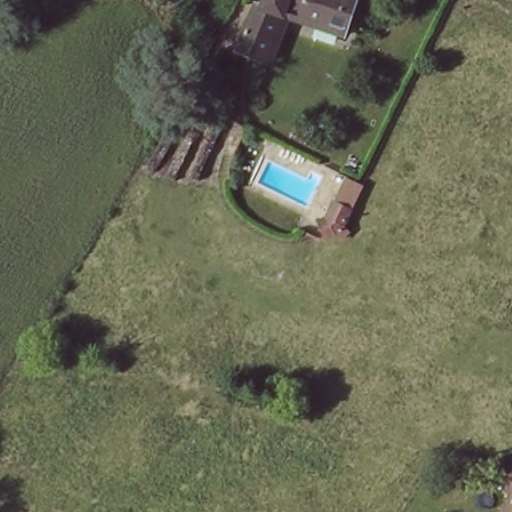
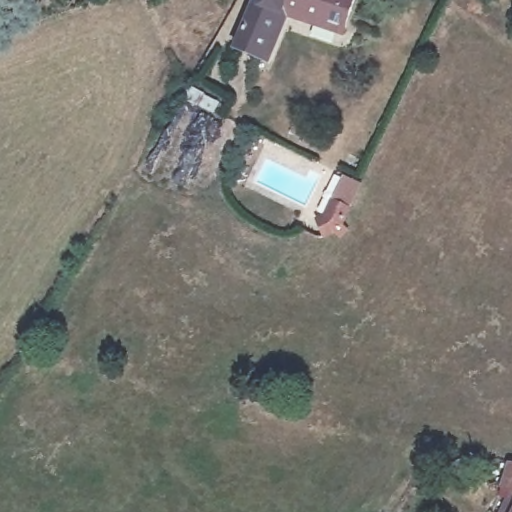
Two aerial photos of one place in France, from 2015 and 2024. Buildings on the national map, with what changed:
unchanged [(341,31),(291,13),(271,62),(242,50),(257,6),(260,7),(263,0),(353,0),(341,31)]
unchanged [(512,458),(512,487),(504,483),(512,458)]
unchanged [(512,505),(512,512),(506,512),(510,504),(512,505)]

